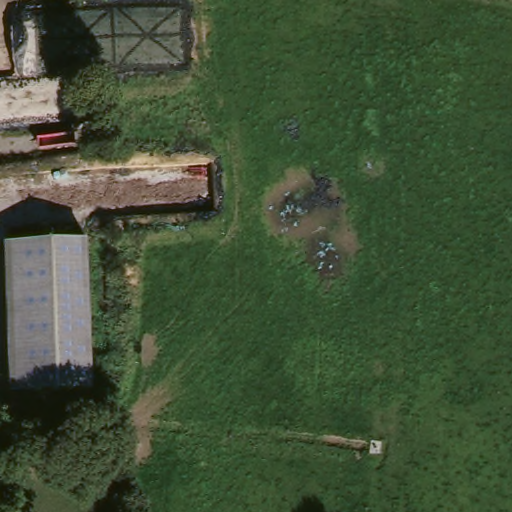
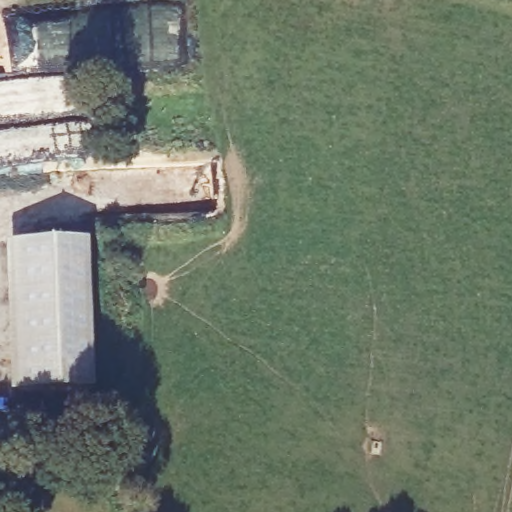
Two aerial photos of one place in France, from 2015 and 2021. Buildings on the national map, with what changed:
unchanged [(92,237),(93,389),(9,393),(5,242),(92,237)]

